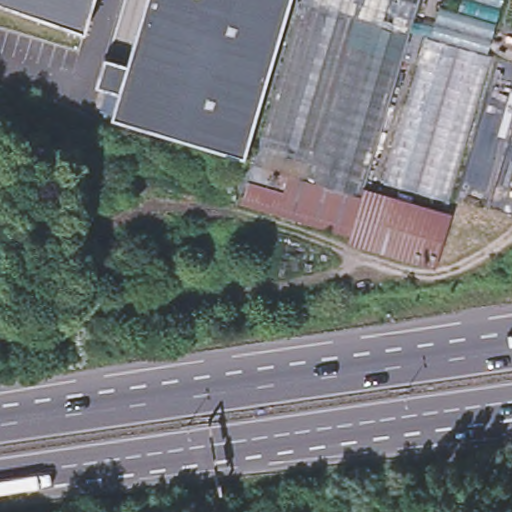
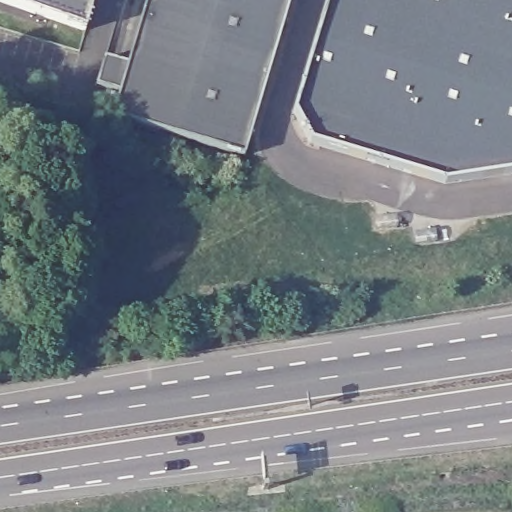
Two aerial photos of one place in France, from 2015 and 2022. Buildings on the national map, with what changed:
unchanged [(85,27),(4,0),(93,0),(85,27)]
unchanged [(100,71),(102,57),(127,65),(146,0),(291,0),(244,157),(112,119),(119,95),(95,87),(100,71)]
demolished [(304,185),(287,180),(282,196),(247,185),(301,0),(359,0),(304,185)]
new [(328,0),(512,0),(512,171),(443,181),(311,141),(293,110),(328,0)]
demolished [(363,186),(358,202),(304,185),(359,0),(419,0),(363,186)]
demolished [(383,193),(427,39),(497,60),(452,214),(383,193)]
demolished [(282,196),(287,180),(304,185),(358,202),(363,186),(383,193),(452,214),(435,270),(240,204),(247,185),(282,196)]

